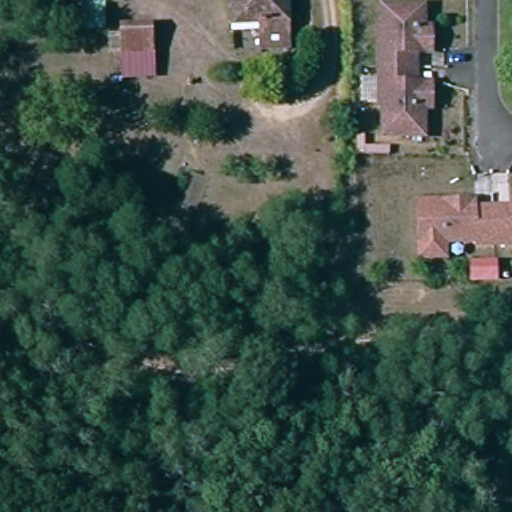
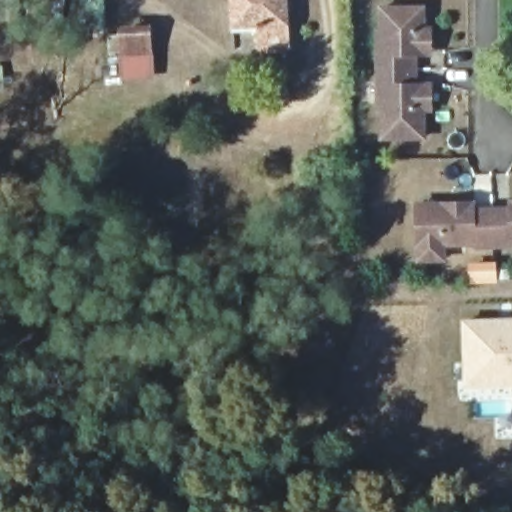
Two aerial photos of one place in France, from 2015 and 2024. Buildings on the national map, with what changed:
unchanged [(121,0),(121,31),(71,31),(71,0),(121,0)]
unchanged [(286,0),(288,50),(262,49),(262,38),(234,37),(233,0),(286,0)]
unchanged [(376,88),(383,88),(391,88),(390,56),(382,56),(375,56),(375,32),(382,31),(381,4),(422,3),(423,33),(427,33),(429,110),(424,110),(426,133),(384,134),(384,112),(377,113),(376,88)]
unchanged [(143,36),(143,54),(115,53),(115,36),(143,36)]
unchanged [(478,213),(512,212),(512,249),(481,250),(481,245),(448,246),(448,261),(424,262),(423,207),(447,207),(477,206),(478,213)]
unchanged [(91,218),(88,235),(79,233),(82,217),(91,218)]
new [(512,385),(464,387),(462,319),(512,317),(512,385)]

